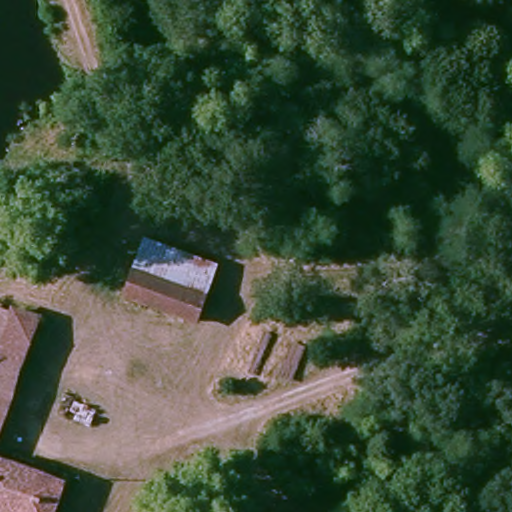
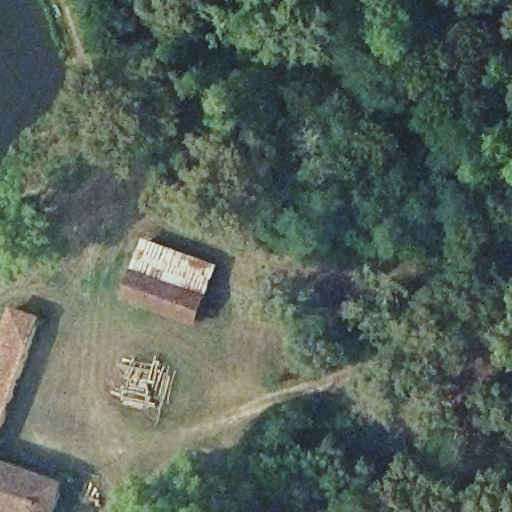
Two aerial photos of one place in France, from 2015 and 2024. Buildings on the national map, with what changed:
unchanged [(60,214),(45,207),(36,203),(47,181),(71,192),(60,214)]
unchanged [(140,266),(155,233),(220,264),(209,295),(140,266)]
unchanged [(197,321),(127,293),(140,266),(209,295),(197,321)]
unchanged [(0,330),(0,296),(20,303),(49,315),(0,437),(0,354),(8,333),(0,330)]
unchanged [(45,512),(0,512),(0,455),(57,478),(45,512)]

